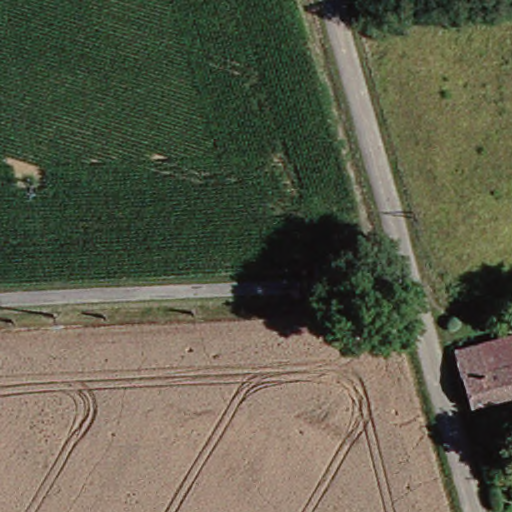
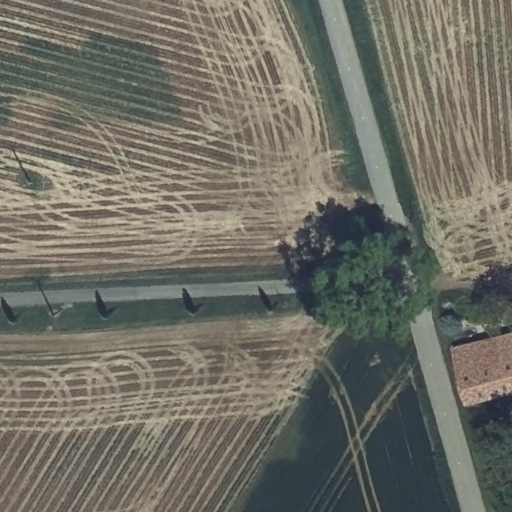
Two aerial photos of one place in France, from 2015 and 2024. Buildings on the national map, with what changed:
unchanged [(448,351),(471,344),(506,334),(512,352),(512,393),(463,406),(448,351)]

